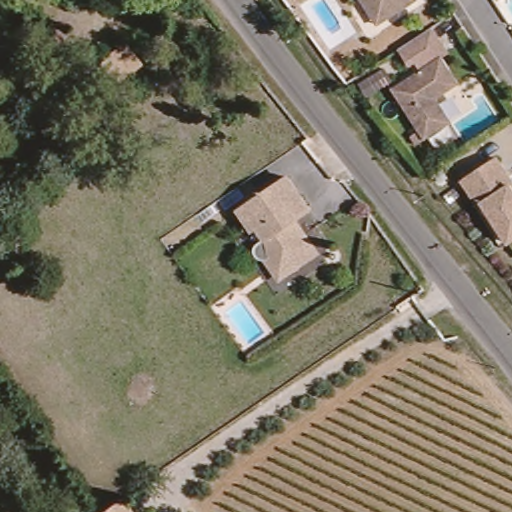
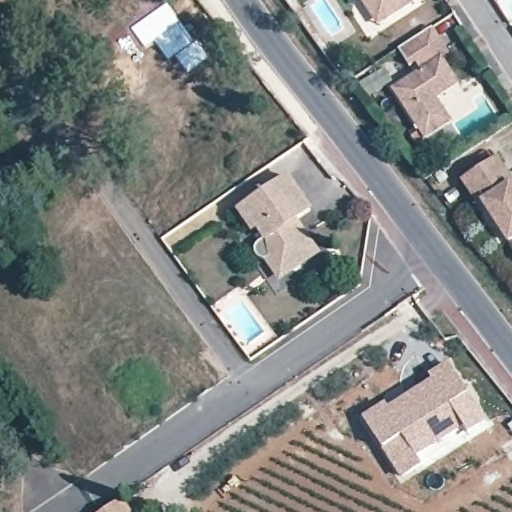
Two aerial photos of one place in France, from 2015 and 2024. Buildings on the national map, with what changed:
unchanged [(361,0),(413,0),(387,17),(377,24),(366,6),(361,0)]
new [(445,6),(461,30),(426,54),(409,30),(445,6)]
unchanged [(126,42),(144,65),(121,82),(104,60),(126,42)]
unchanged [(438,60),(456,85),(434,99),(451,124),(433,135),(425,140),(421,134),(392,90),(438,60)]
unchanged [(508,184),(505,186),(512,197),(512,236),(500,243),(477,203),(472,206),(457,181),(492,161),(508,184)]
unchanged [(245,208),(287,179),(311,210),(292,223),(313,251),(279,273),(268,258),(266,258),(261,257),(258,254),(256,246),(256,245),(267,237),(258,226),(245,208)]
new [(466,427),(415,457),(421,468),(402,480),(364,419),(385,405),(388,410),(435,381),(432,375),(448,365),(485,421),(469,431),(466,427)]
unchanged [(105,510),(121,500),(130,512),(103,512),(105,510)]

